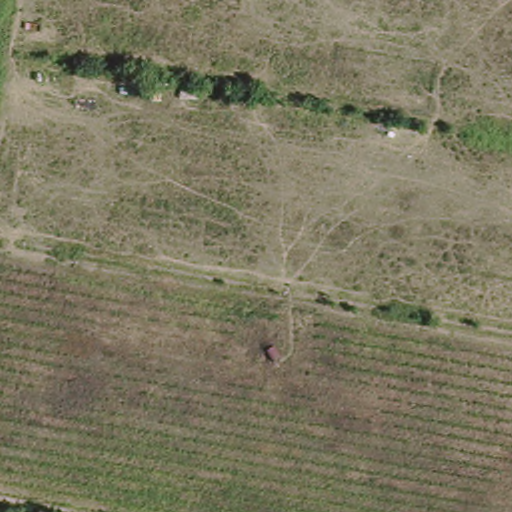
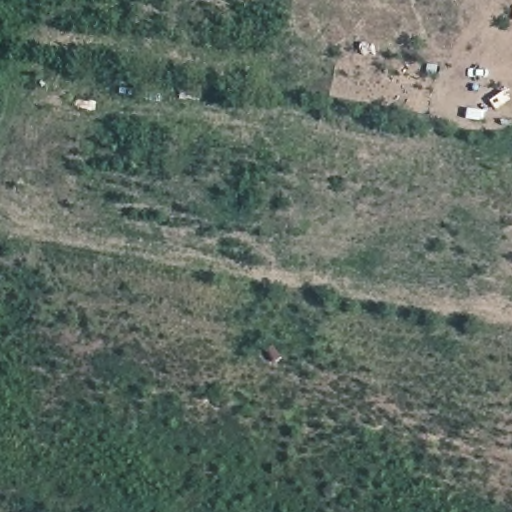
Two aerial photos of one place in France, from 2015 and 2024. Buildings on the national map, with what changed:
unchanged [(285,358),(276,364),(269,352),(278,347),(285,358)]

